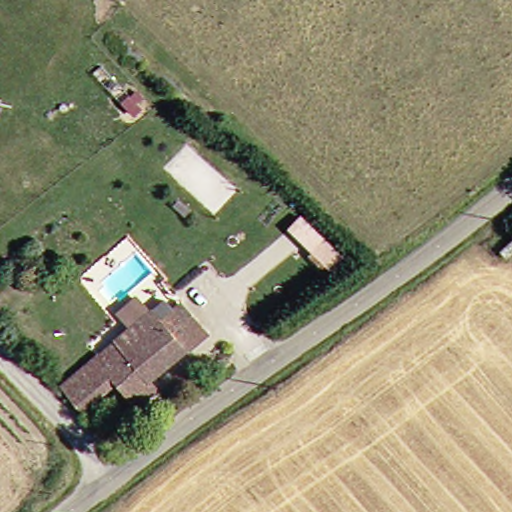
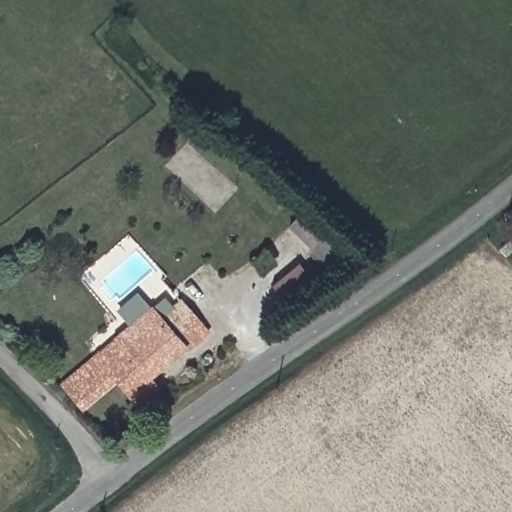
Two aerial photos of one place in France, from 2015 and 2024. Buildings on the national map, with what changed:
unchanged [(191,352),(184,345),(162,316),(180,303),(189,292),(218,328),(213,332),(191,352)]
unchanged [(81,409),(65,393),(154,306),(162,316),(184,345),(148,378),(156,390),(137,406),(129,396),(122,385),(88,416),(81,409)]

